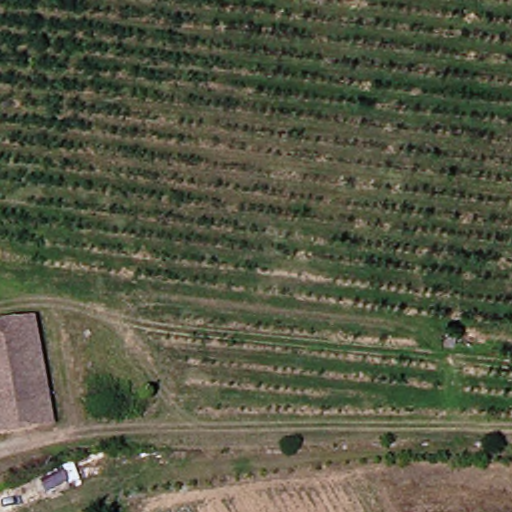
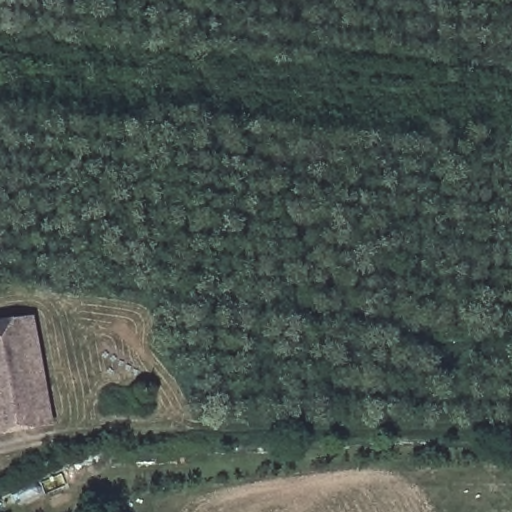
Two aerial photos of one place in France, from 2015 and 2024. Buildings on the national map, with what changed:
unchanged [(41,328),(49,402),(0,416),(0,332),(41,328)]
unchanged [(52,425),(0,439),(0,416),(49,402),(52,425)]

